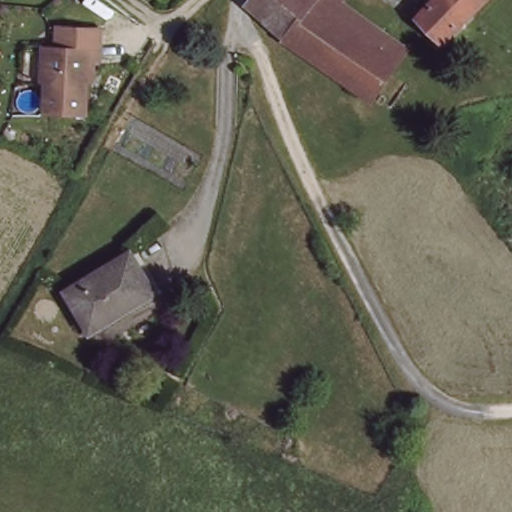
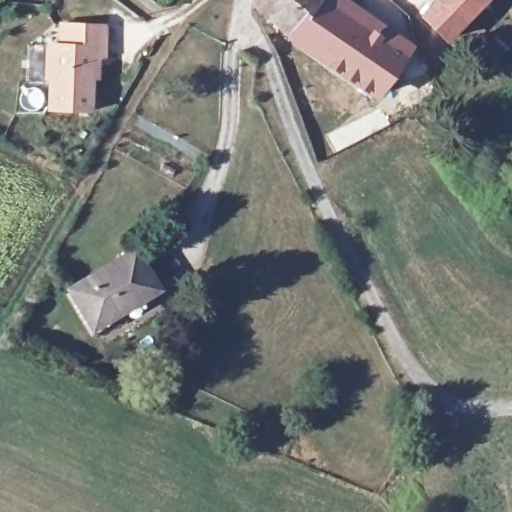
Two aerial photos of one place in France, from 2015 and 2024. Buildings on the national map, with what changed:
unchanged [(286,32),(252,0),(334,0),(331,6),(350,21),(398,60),(369,101),(300,45),(294,41),(286,32)]
unchanged [(421,20),(435,0),(489,0),(472,18),(441,49),(421,20)]
unchanged [(58,28),(99,29),(99,57),(88,56),(86,112),(46,111),(48,80),(41,80),(43,47),(49,48),(57,49),(58,28)]
unchanged [(93,331),(69,293),(127,256),(151,295),(93,331)]

